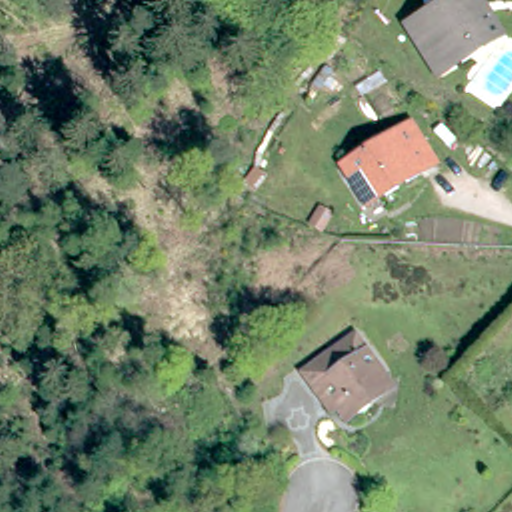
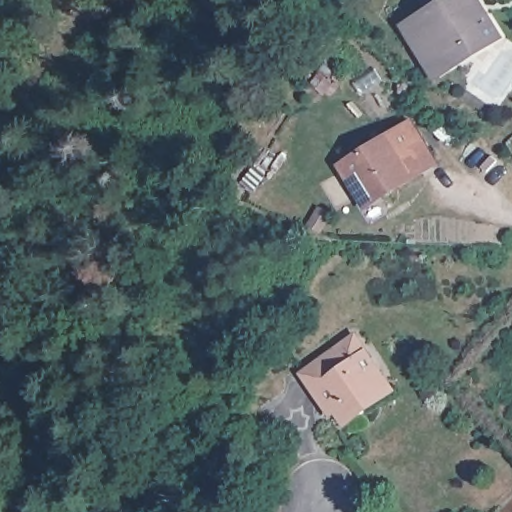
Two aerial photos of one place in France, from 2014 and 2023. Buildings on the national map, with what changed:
unchanged [(430,68),(405,28),(449,0),(479,0),(502,36),(475,53),(477,55),(437,79),(430,68)]
unchanged [(418,170),(422,176),(371,213),(346,179),(357,170),(352,163),(408,123),(434,159),(418,170)]
unchanged [(340,403),(333,412),(309,389),(350,342),(397,383),(363,423),(340,403)]

